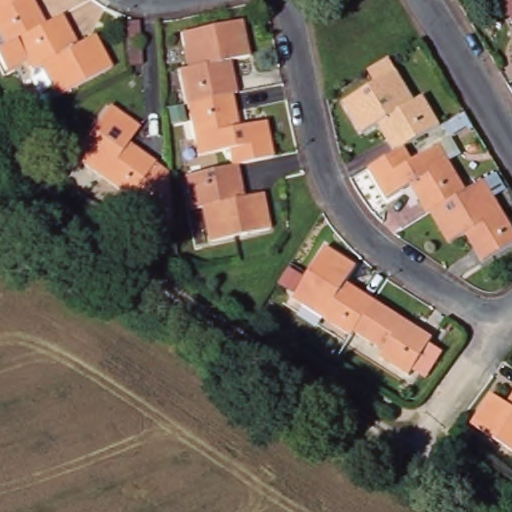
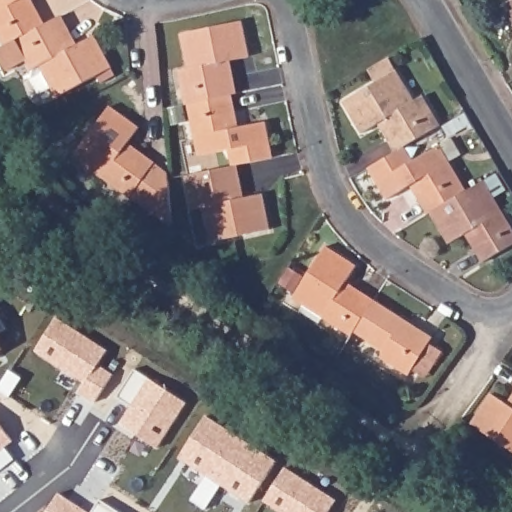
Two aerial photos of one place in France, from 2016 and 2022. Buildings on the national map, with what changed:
unchanged [(45,24),(35,29),(5,45),(0,37),(0,0),(32,0),(45,24)]
unchanged [(504,5),(512,0),(512,19),(504,5)]
unchanged [(26,59),(6,70),(0,59),(0,48),(5,45),(35,29),(45,24),(61,15),(69,29),(77,44),(95,35),(111,68),(57,97),(51,85),(40,65),(31,70),(26,59)]
unchanged [(232,94),(227,95),(220,96),(202,100),(184,104),(180,104),(174,70),(184,68),(179,47),(176,34),(237,21),(245,57),(225,61),(229,78),(232,94)]
unchanged [(139,22),(142,65),(130,66),(127,22),(139,22)]
unchanged [(338,101),(370,83),(363,70),(385,57),(391,70),(398,82),(410,101),(418,96),(435,126),(400,147),(390,152),(382,138),(373,123),(356,133),(338,101)]
unchanged [(202,100),(220,96),(227,95),(234,127),(261,122),(268,157),(240,163),(232,165),(227,166),(224,150),(194,156),(184,104),(202,100)]
unchanged [(124,143),(137,153),(150,163),(126,197),(69,157),(105,106),(135,127),(124,143)]
unchanged [(39,122),(66,162),(54,171),(26,130),(39,122)]
unchanged [(375,161),(390,152),(400,147),(408,161),(435,145),(461,191),(459,193),(427,212),(423,214),(406,185),(382,199),(363,168),(375,161)]
unchanged [(163,172),(167,226),(126,197),(150,163),(163,172)]
unchanged [(188,209),(181,175),(191,173),(220,167),(227,166),(232,165),(235,180),(239,197),(258,194),(265,230),(205,242),(202,229),(198,207),(188,209)]
unchanged [(445,243),(427,212),(459,193),(461,191),(480,180),(487,192),(498,211),(512,235),(512,243),(479,262),(471,249),(462,234),(445,243)]
unchanged [(287,298),(321,246),(352,265),(341,282),(356,291),(370,300),(356,320),(349,331),(346,336),(317,317),(299,305),(287,298)]
unchanged [(421,378),(408,369),(405,375),(375,356),(379,351),(349,331),(356,320),(370,300),(400,319),(413,328),(428,337),(425,343),(437,352),(421,378)]
new [(0,332),(0,317),(6,328),(0,332)]
new [(58,319),(109,352),(100,366),(115,376),(96,403),(81,393),(87,384),(37,352),(58,319)]
new [(0,351),(0,346),(2,349),(0,351)]
new [(136,370),(186,402),(157,448),(122,425),(133,407),(119,398),(136,370)]
unchanged [(466,424),(486,393),(509,408),(512,404),(512,455),(466,424)]
new [(206,415),(277,461),(250,503),(221,485),(206,510),(191,500),(207,476),(179,458),(206,415)]
new [(4,447),(14,459),(0,470),(0,425),(12,441),(4,447)]
new [(336,501),(330,512),(282,512),(265,500),(286,468),(336,501)]
new [(87,512),(47,512),(59,494),(87,512)]
new [(119,512),(92,512),(100,500),(119,512)]

